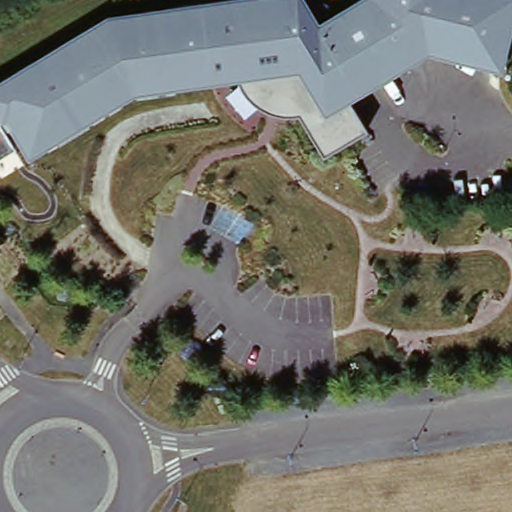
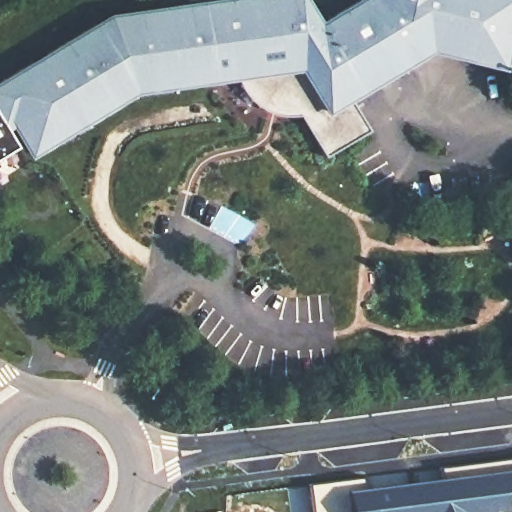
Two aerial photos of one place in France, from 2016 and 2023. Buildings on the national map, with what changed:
unchanged [(508,69),(431,49),(354,98),(373,128),(326,153),(305,115),(294,114),(271,109),(250,92),(244,76),(132,95),(31,158),(10,118),(0,123),(0,77),(105,14),(202,0),(309,0),(320,16),(355,0),(512,0),(512,49),(508,69)]
new [(369,475),(369,497),(464,461),(512,458),(512,512),(312,512),(309,478),(369,475)]

